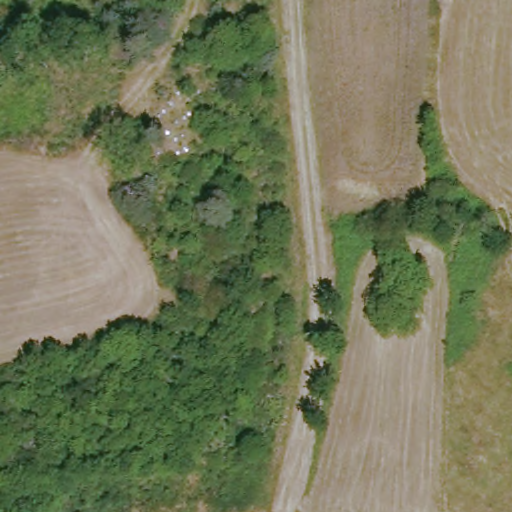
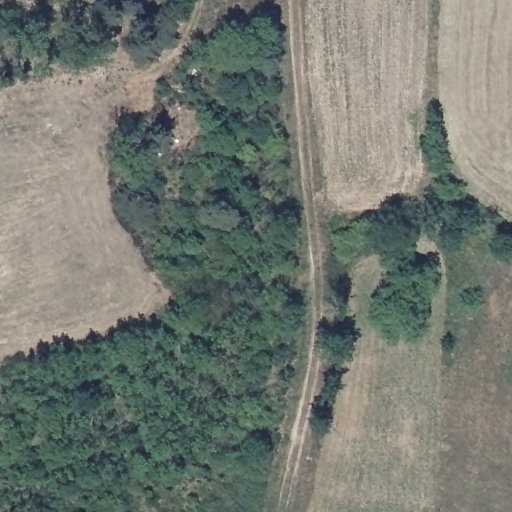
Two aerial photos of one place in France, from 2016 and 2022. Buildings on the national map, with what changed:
[]

